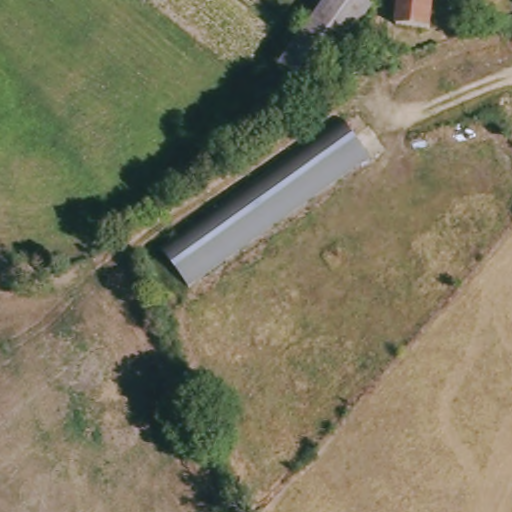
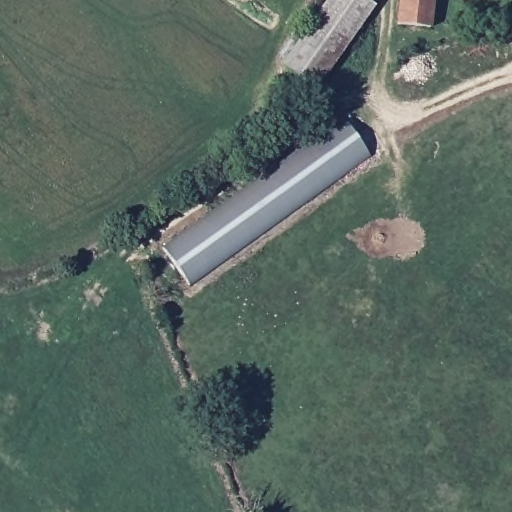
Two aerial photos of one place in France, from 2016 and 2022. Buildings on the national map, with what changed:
unchanged [(289,69),(338,0),(353,0),(376,15),(323,94),(289,69)]
unchanged [(436,30),(407,29),(409,0),(438,0),(436,30)]
unchanged [(166,237),(350,126),(375,166),(193,280),(166,237)]

